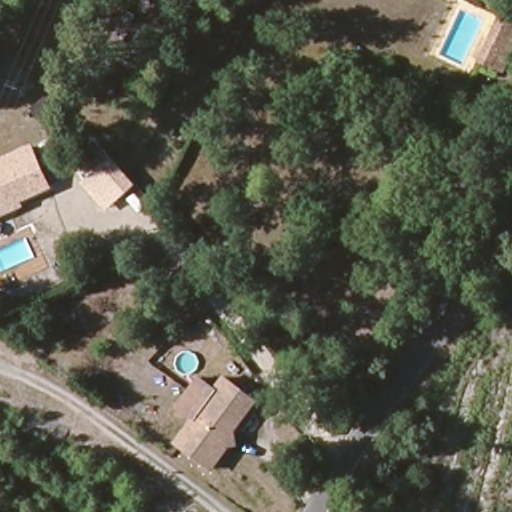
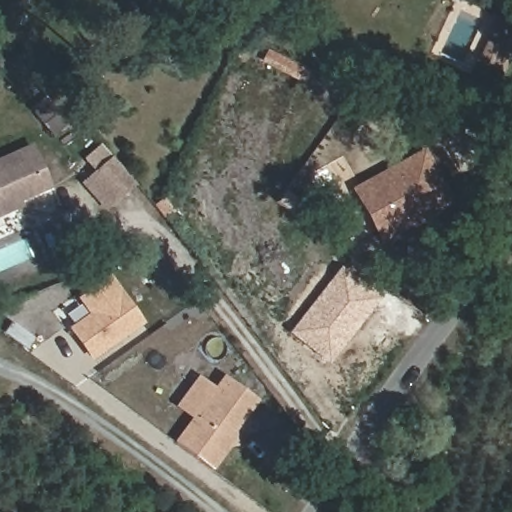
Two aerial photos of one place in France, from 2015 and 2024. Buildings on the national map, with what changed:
unchanged [(502,70),(480,59),(499,18),(512,25),(512,51),(504,68),(502,70)]
unchanged [(110,97),(95,90),(101,74),(116,81),(110,97)]
unchanged [(20,207),(15,215),(0,222),(0,169),(40,151),(57,191),(20,207)]
new [(419,151),(445,200),(392,229),(377,237),(351,189),(366,180),(419,151)]
unchanged [(105,209),(82,182),(110,156),(135,184),(105,209)]
unchanged [(493,195),(512,172),(512,192),(503,203),(493,195)]
new [(339,266),(378,296),(327,363),(287,333),(339,266)]
new [(143,322),(90,360),(67,328),(88,314),(78,300),(111,279),(143,322)]
unchanged [(237,450),(220,474),(184,448),(202,423),(186,412),(206,383),(222,395),(232,382),(264,406),(242,436),(244,449),(237,450)]

